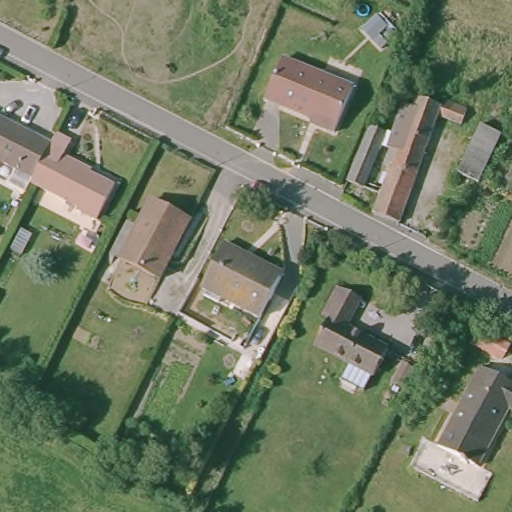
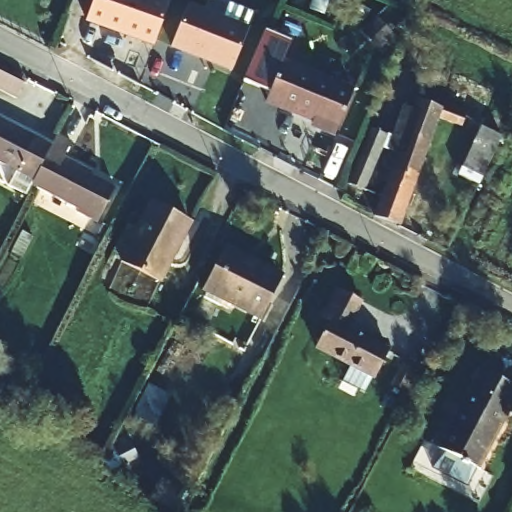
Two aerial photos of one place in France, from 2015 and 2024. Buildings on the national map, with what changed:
new [(86,22),(94,0),(151,0),(169,6),(155,46),(86,22)]
new [(249,32),(231,72),(171,44),(189,4),(249,32)]
unchanged [(268,103),(284,63),(353,90),(334,135),(316,128),(318,124),(268,103)]
new [(16,98),(0,89),(0,71),(24,85),(16,98)]
unchanged [(459,128),(434,119),(397,227),(371,219),(377,200),(371,198),(402,111),(409,113),(413,101),(438,110),(441,102),(464,111),(462,121),(459,128)]
unchanged [(29,178),(0,163),(0,119),(48,143),(45,148),(29,178)]
unchanged [(480,121),(505,133),(480,180),(454,171),(480,121)]
unchanged [(381,137),(359,193),(343,187),(364,131),(381,137)]
unchanged [(86,169),(85,173),(110,186),(93,220),(73,209),(73,207),(27,183),(29,178),(45,148),(86,169)]
unchanged [(150,205),(188,225),(158,283),(119,263),(150,205)]
unchanged [(278,277),(257,316),(200,287),(223,243),(243,253),(241,257),(278,277)]
unchanged [(323,317),(337,288),(359,300),(345,328),(388,351),(374,379),(316,348),(331,321),(323,317)]
unchanged [(480,362),(512,379),(512,403),(506,400),(474,462),(438,444),(480,362)]

